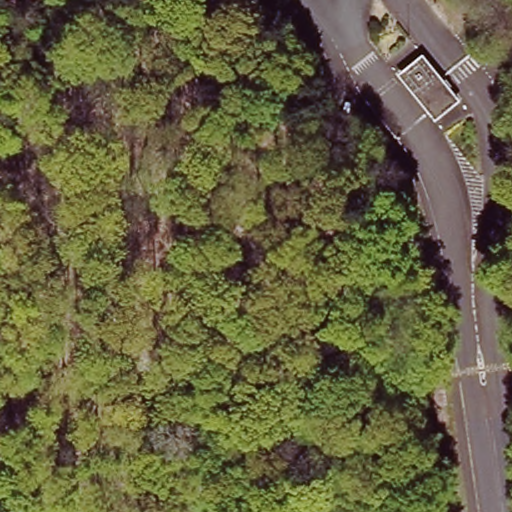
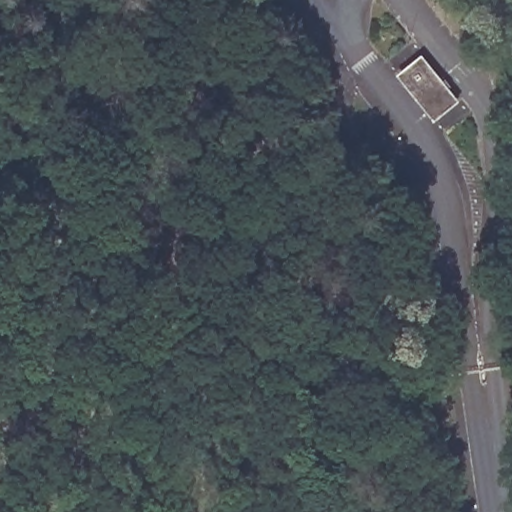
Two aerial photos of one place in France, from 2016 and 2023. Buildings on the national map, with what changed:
unchanged [(459,101),(432,122),(398,78),(412,65),(424,57),(459,101)]

